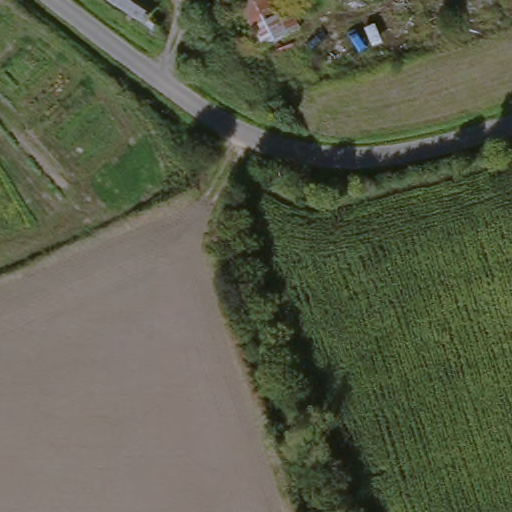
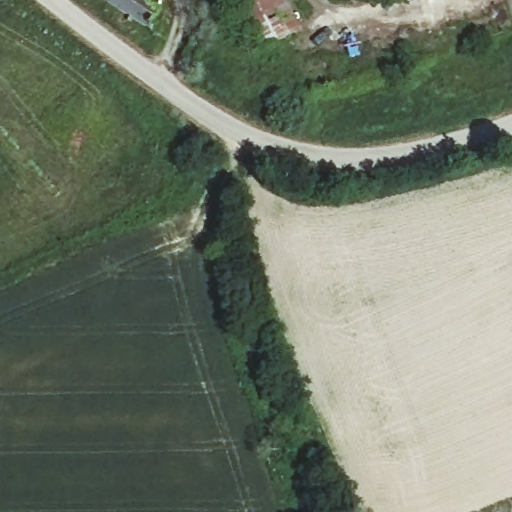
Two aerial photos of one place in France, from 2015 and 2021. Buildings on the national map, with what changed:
unchanged [(145,24),(155,30),(149,38),(142,34),(90,0),(130,0),(150,13),(145,24)]
unchanged [(263,50),(236,0),(268,0),(288,37),(263,50)]
unchanged [(299,30),(288,37),(268,0),(283,0),(293,17),(299,30)]

